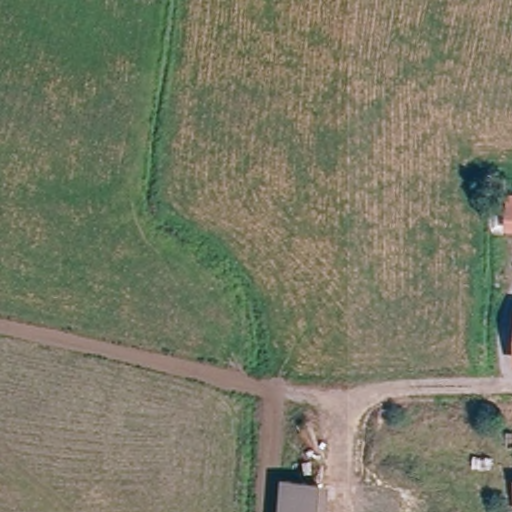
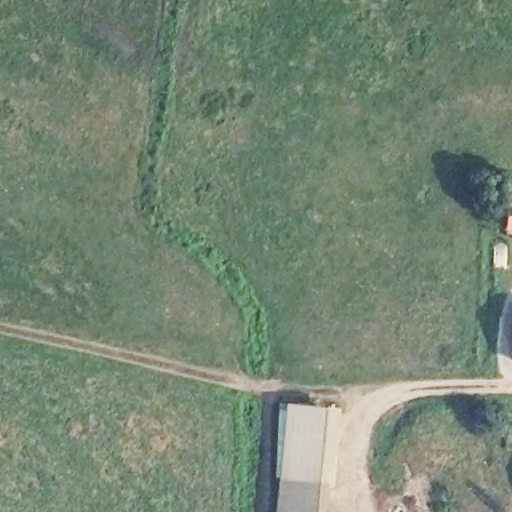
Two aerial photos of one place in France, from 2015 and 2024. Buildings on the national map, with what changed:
unchanged [(503,237),(505,201),(512,202),(512,238),(503,237)]
new [(280,403),(285,402),(339,408),(332,486),(321,485),(276,481),(280,403)]
unchanged [(321,485),(320,512),(275,512),(276,481),(321,485)]

